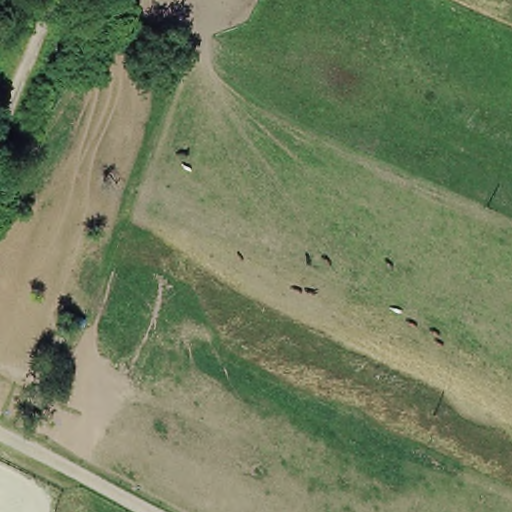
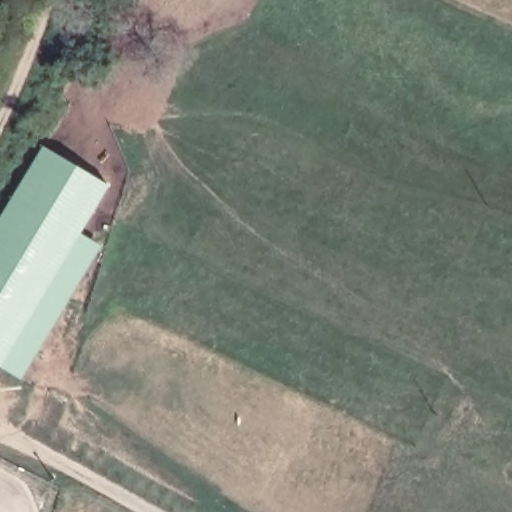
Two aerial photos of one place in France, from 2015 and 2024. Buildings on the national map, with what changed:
new [(82,236),(106,252),(26,386),(0,370),(0,216),(40,150),(110,189),(82,236)]

